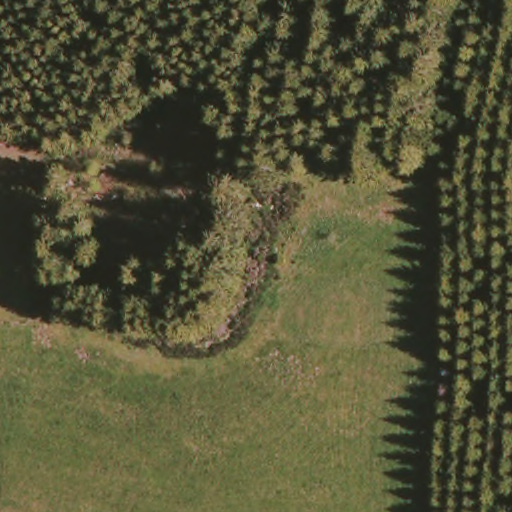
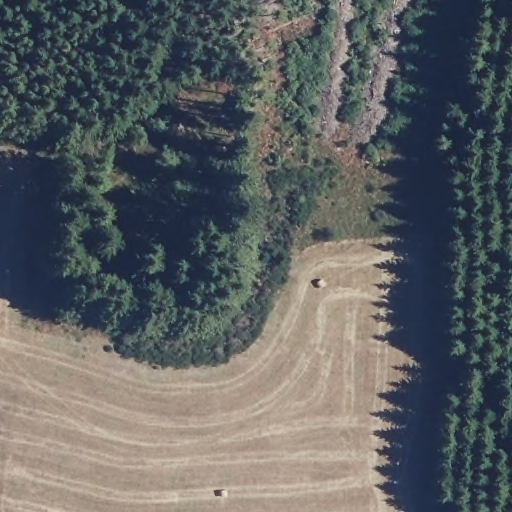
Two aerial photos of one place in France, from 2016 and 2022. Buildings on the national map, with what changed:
[]

